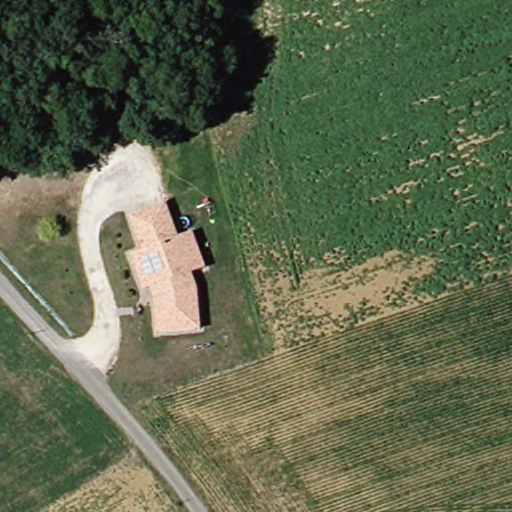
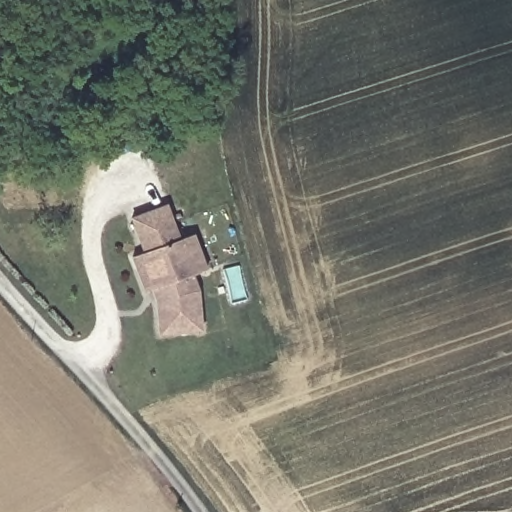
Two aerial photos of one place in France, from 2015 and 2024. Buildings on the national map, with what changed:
unchanged [(138,270),(132,253),(144,249),(143,247),(132,215),(151,208),(167,202),(178,233),(179,236),(193,231),(206,268),(192,273),(196,284),(201,329),(158,334),(154,298),(151,288),(145,290),(138,270)]

